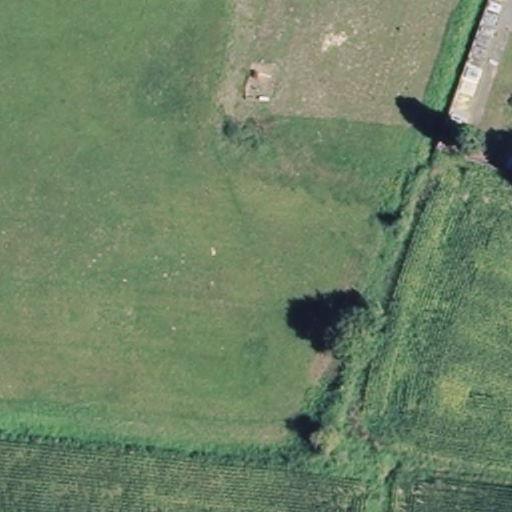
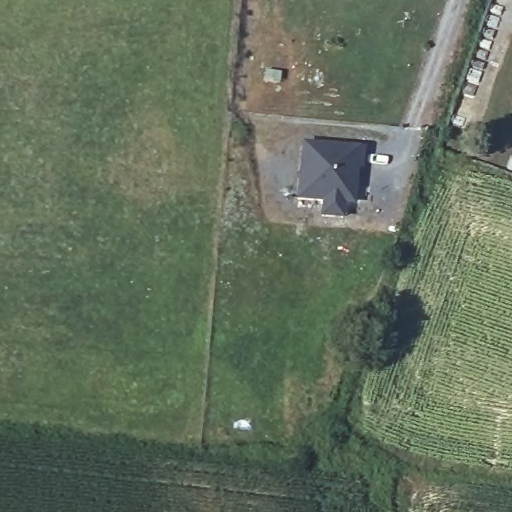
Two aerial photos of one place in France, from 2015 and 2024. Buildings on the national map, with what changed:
new [(322,217),(323,202),(298,200),(303,144),(362,150),(360,167),(356,167),(353,200),(348,204),(343,204),(342,219),(322,217)]

